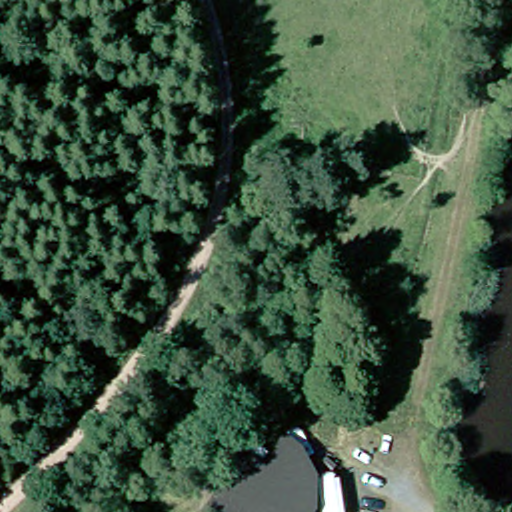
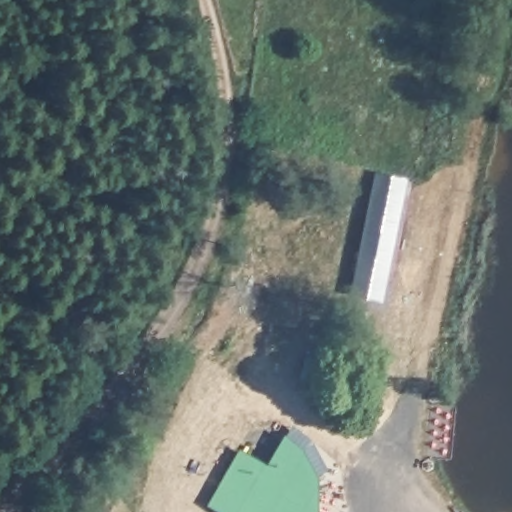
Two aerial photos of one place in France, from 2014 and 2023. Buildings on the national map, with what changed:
new [(408,176),(382,300),(350,293),(377,170),(408,176)]
unchanged [(264,475),(277,453),(285,459),(292,465),(298,473),(302,482),(305,491),(307,501),(306,511),(306,512),(226,512),(215,505),(240,462),(264,475)]

